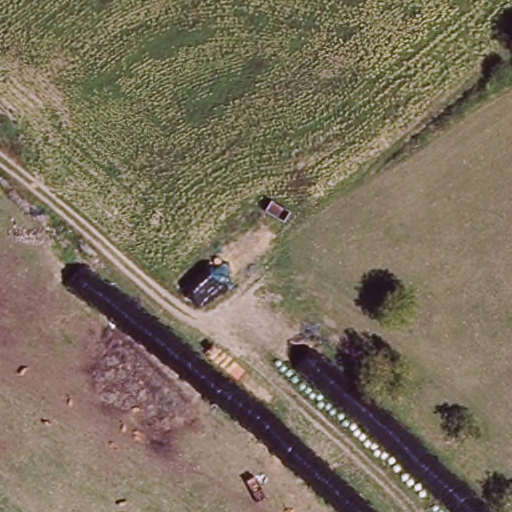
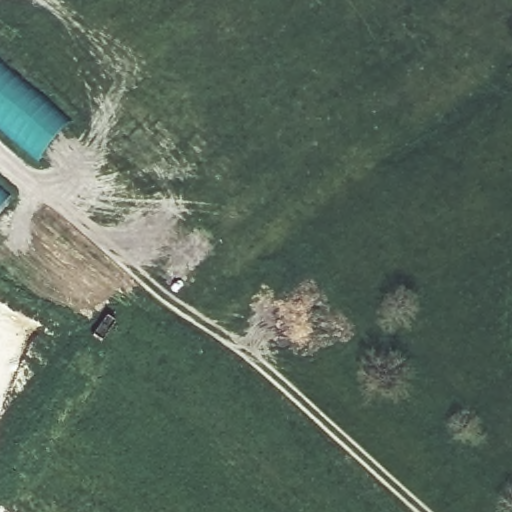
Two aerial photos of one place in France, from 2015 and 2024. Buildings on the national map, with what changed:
new [(36,164),(0,131),(0,58),(71,122),(36,164)]
new [(0,205),(0,187),(9,195),(0,205)]

